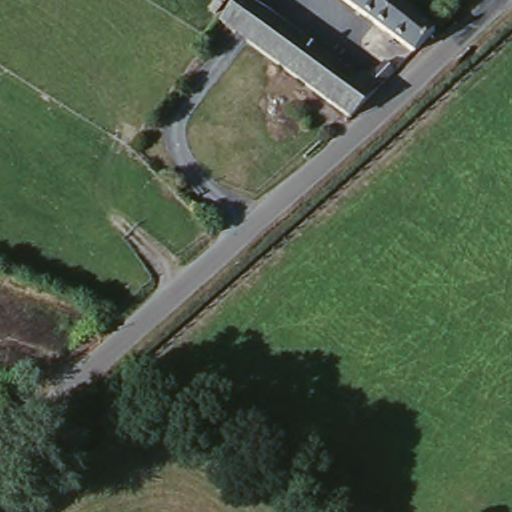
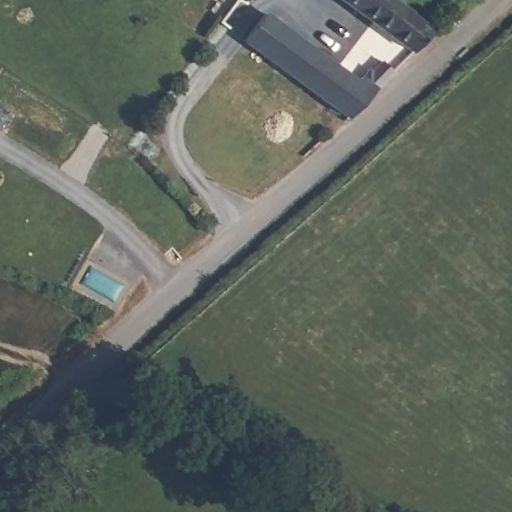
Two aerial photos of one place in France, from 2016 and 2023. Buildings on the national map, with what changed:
unchanged [(347,119),(219,26),(216,23),(234,0),(236,0),(244,3),(333,71),(339,66),(342,70),(350,62),(352,65),(363,54),(392,73),(347,119)]
unchanged [(420,44),(360,0),(420,0),(420,2),(441,23),(435,29),(420,44)]

